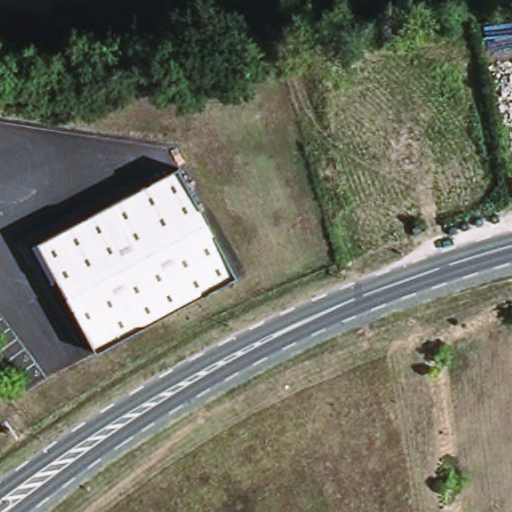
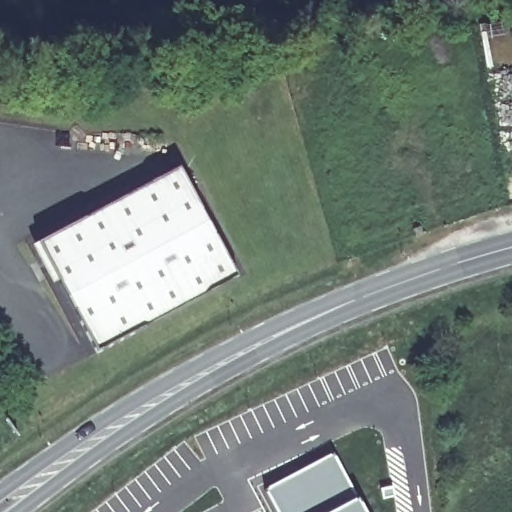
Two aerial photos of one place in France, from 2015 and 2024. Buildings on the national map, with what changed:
unchanged [(97,355),(41,244),(185,172),(241,284),(97,355)]
unchanged [(421,235),(412,239),(409,231),(418,228),(421,235)]
new [(332,453),(356,497),(329,512),(276,512),(264,490),(332,453)]
new [(356,497),(364,512),(329,512),(356,497)]

